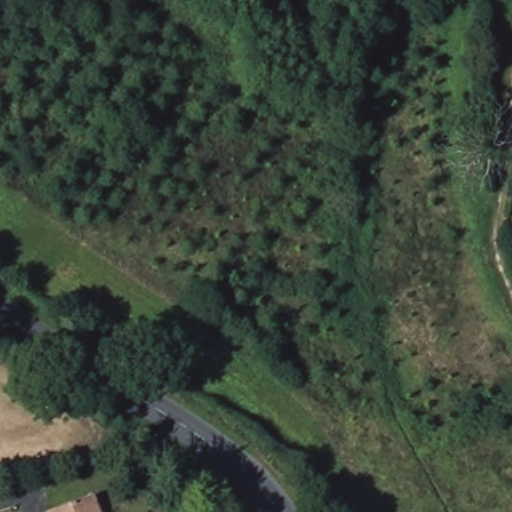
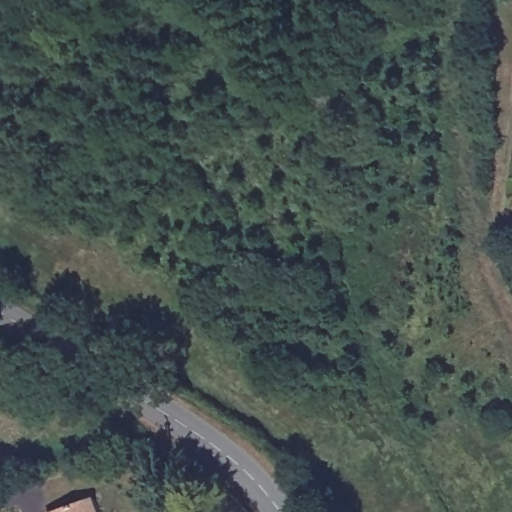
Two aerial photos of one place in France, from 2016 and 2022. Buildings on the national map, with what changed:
unchanged [(99,512),(51,512),(93,497),(99,512)]

